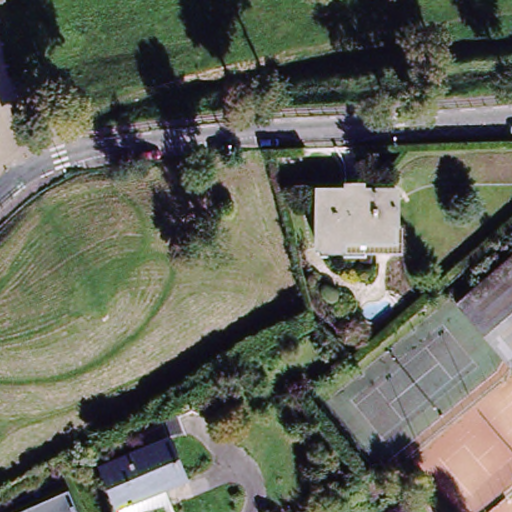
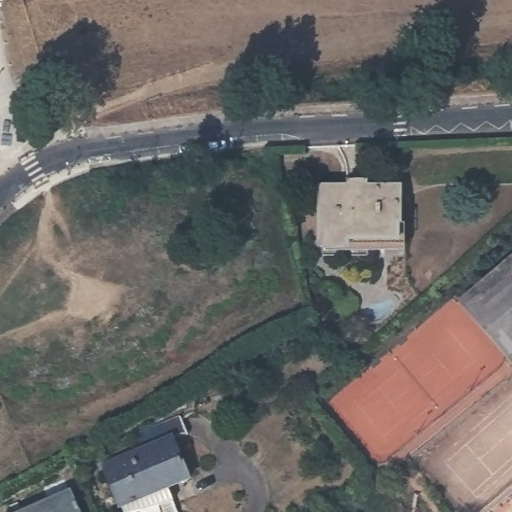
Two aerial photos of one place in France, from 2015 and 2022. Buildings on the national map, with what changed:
unchanged [(10,1),(0,3),(0,0),(9,0),(10,1)]
unchanged [(372,193),(372,197),(402,197),(402,247),(352,247),(352,252),(325,252),(325,197),(351,197),(351,193),(351,192),(351,189),(372,189),(372,193)]
unchanged [(461,303),(512,261),(512,366),(461,303)]
unchanged [(144,512),(129,512),(127,508),(122,511),(104,471),(140,455),(132,437),(177,418),(186,437),(180,437),(175,438),(170,440),(171,442),(190,480),(172,489),(175,506),(171,507),(173,512),(160,512),(159,509),(144,512)]
unchanged [(78,512),(19,512),(67,489),(78,512)]
unchanged [(373,512),(393,496),(405,512),(373,512)]

